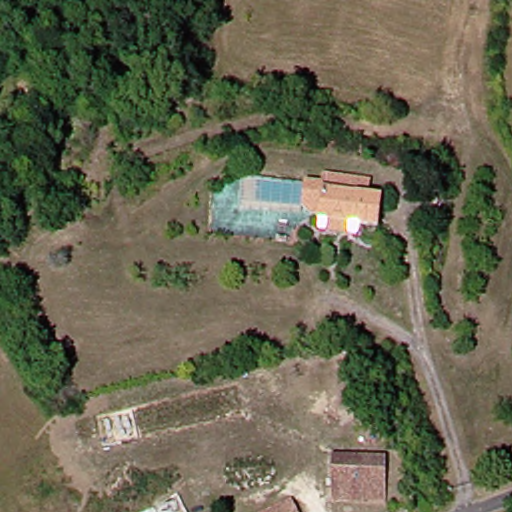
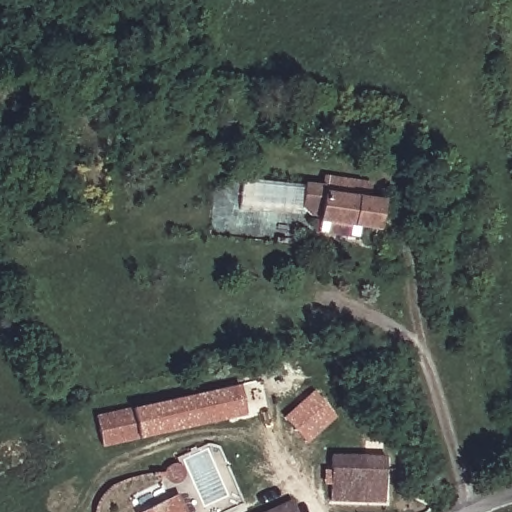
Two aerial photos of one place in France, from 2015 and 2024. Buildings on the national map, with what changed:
unchanged [(362,222),(360,233),(322,227),(324,212),(313,211),(307,204),(308,179),(330,181),(332,173),(372,179),(370,194),(385,196),(382,225),(362,222)]
demolished [(302,182),(300,208),(242,203),(245,177),(302,182)]
new [(96,416),(240,384),(247,416),(103,448),(96,416)]
new [(307,443),(285,416),(315,389),(338,416),(307,443)]
unchanged [(387,456),(387,501),(333,501),(333,456),(387,456)]
new [(190,512),(140,512),(180,493),(190,512)]
unchanged [(293,500),(298,512),(267,512),(293,500)]

